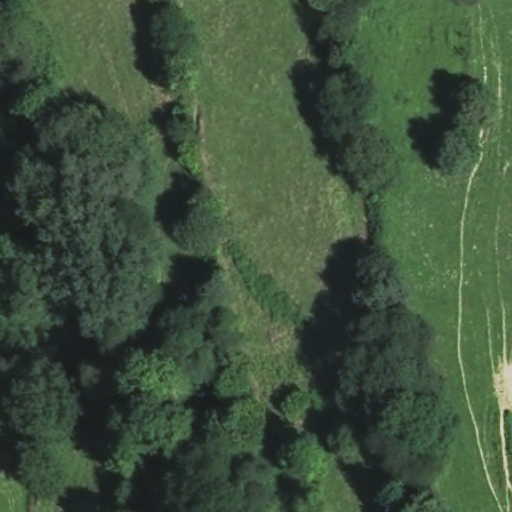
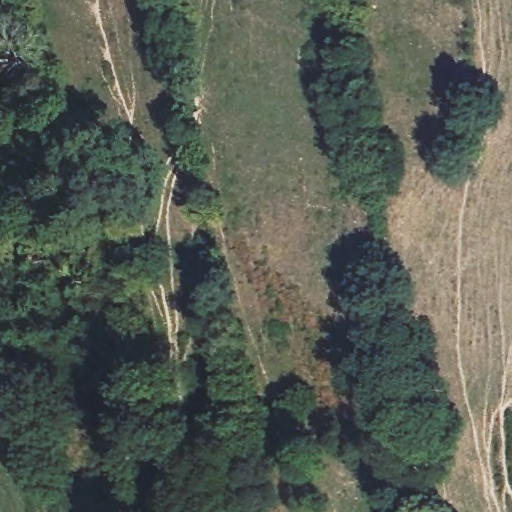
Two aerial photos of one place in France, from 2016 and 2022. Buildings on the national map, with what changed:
[]

